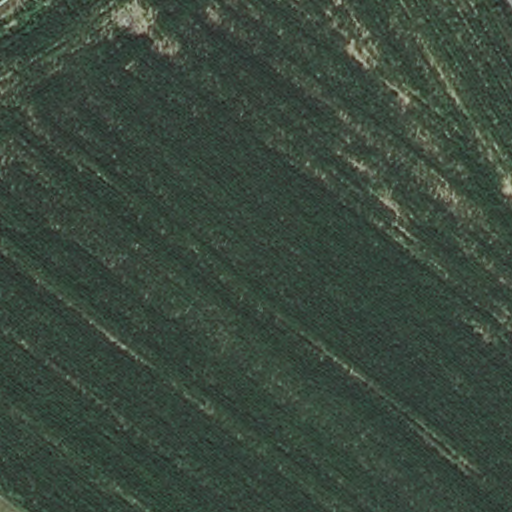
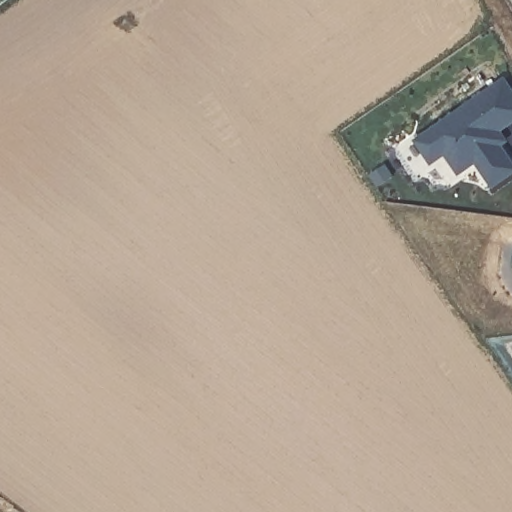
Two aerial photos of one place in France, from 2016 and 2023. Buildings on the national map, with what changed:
new [(512,124),(503,130),(510,142),(504,146),(512,156),(512,176),(495,189),(477,164),(459,176),(445,156),(431,165),(413,140),(506,77),(512,85),(512,124)]

